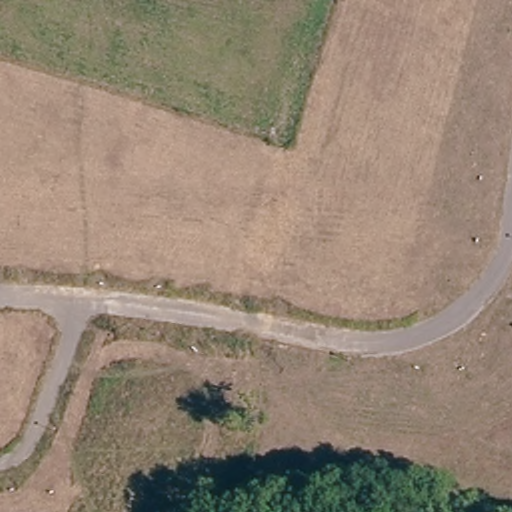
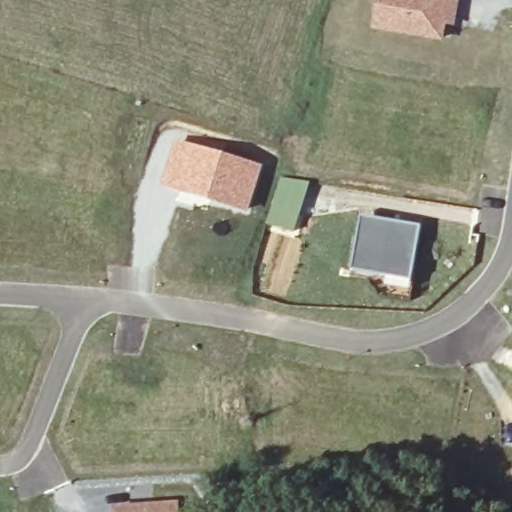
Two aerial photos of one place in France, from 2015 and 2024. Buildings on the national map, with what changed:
new [(373,30),(379,0),(460,0),(456,27),(446,25),(443,42),(373,30)]
new [(174,138),(262,165),(246,214),(159,187),(174,138)]
new [(279,175),(308,183),(292,233),(265,224),(279,175)]
new [(359,214),(421,225),(410,283),(350,271),(359,214)]
new [(180,512),(117,512),(117,508),(179,504),(180,512)]

